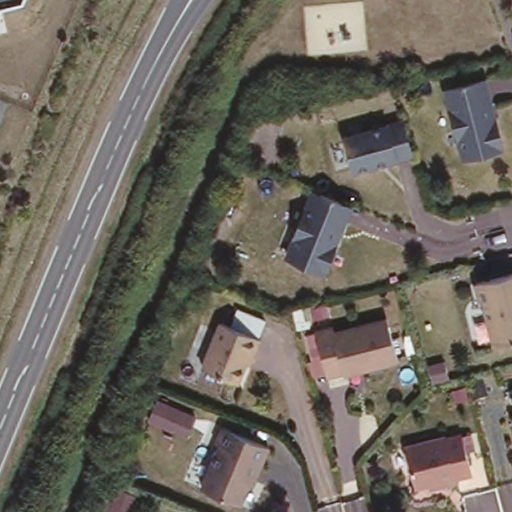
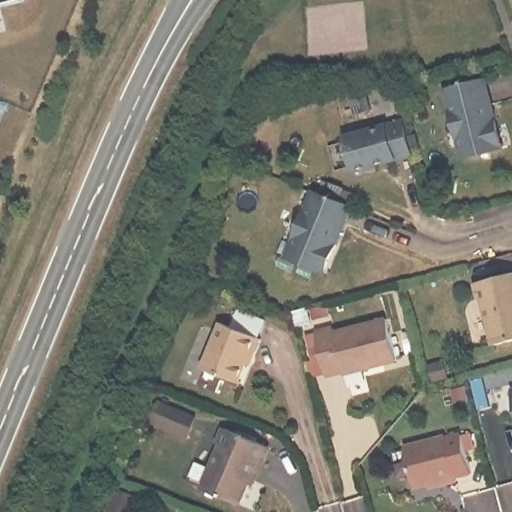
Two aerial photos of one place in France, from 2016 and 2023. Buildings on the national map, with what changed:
unchanged [(24,1),(0,7),(0,0),(24,0),(24,1)]
unchanged [(483,75),(494,115),(502,143),(463,153),(445,85),(478,76),(483,75)]
unchanged [(411,156),(352,172),(343,140),(402,123),(411,156)]
unchanged [(285,259),(310,194),(343,206),(347,208),(332,246),(322,274),(285,259)]
unchanged [(512,343),(498,347),(486,300),(482,301),(478,286),(512,276),(512,343)]
unchanged [(331,322),(332,327),(385,313),(396,355),(342,369),(342,367),(326,371),(313,328),(331,322)]
unchanged [(217,318),(257,335),(251,351),(246,350),(236,379),(199,366),(217,318)]
unchanged [(512,388),(512,398),(510,389),(512,388)]
unchanged [(217,446),(214,445),(221,429),(266,447),(260,463),(256,462),(239,505),(200,490),(217,446)]
unchanged [(460,434),(468,479),(416,491),(404,449),(460,434)]

